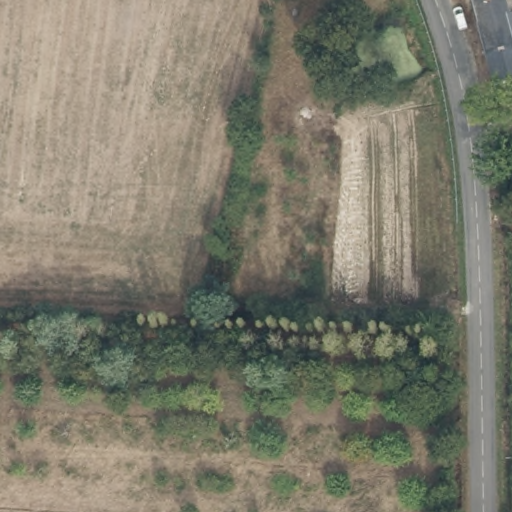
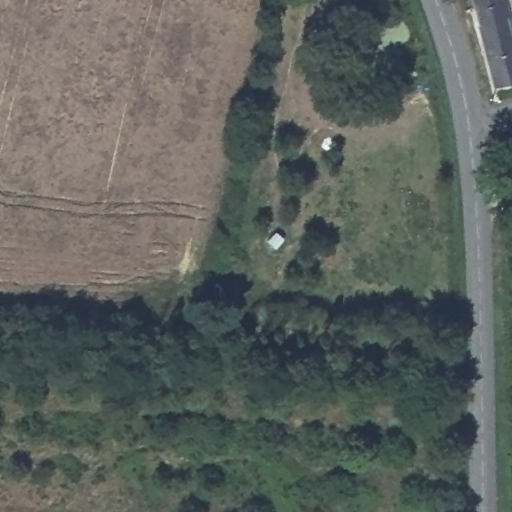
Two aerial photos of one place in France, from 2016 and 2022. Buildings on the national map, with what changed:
unchanged [(471,0),(512,0),(512,77),(492,82),(471,0)]

